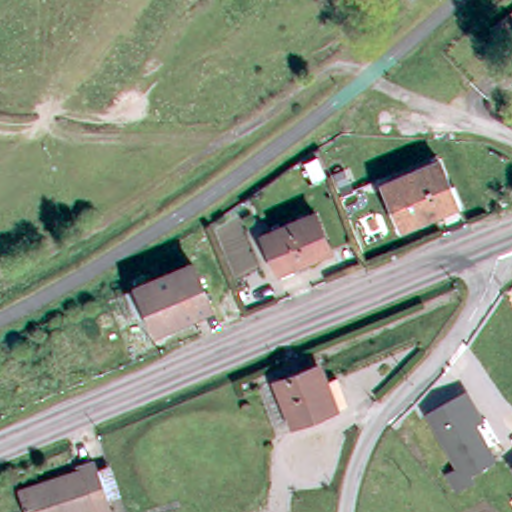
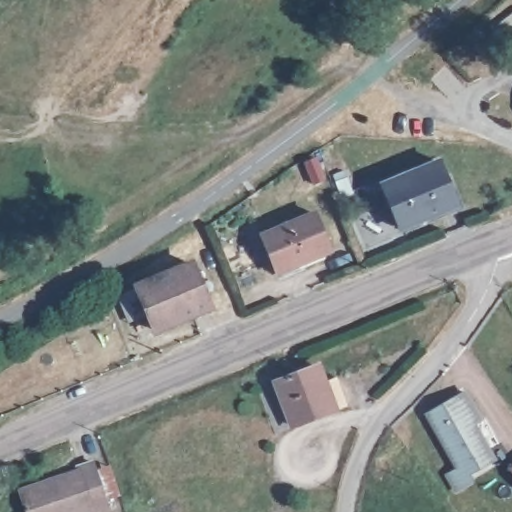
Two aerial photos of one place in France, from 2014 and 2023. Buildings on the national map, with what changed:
unchanged [(455,207),(400,229),(394,213),(381,181),(435,159),(450,195),(455,207)]
unchanged [(327,251),(277,271),(271,254),(262,232),(313,212),(322,237),(327,251)]
unchanged [(158,326),(147,299),(142,285),(194,263),(201,280),(211,304),(158,326)]
unchanged [(276,382),(319,367),(325,384),(334,382),(342,406),(291,424),(276,382)]
unchanged [(457,487),(450,475),(460,469),(426,410),(466,388),(480,417),(473,420),(493,459),(466,473),(470,480),(457,487)]
unchanged [(85,466),(100,505),(81,512),(37,512),(27,487),(85,466)]

